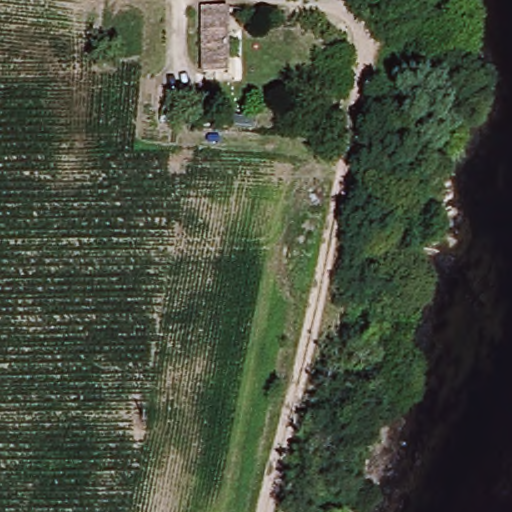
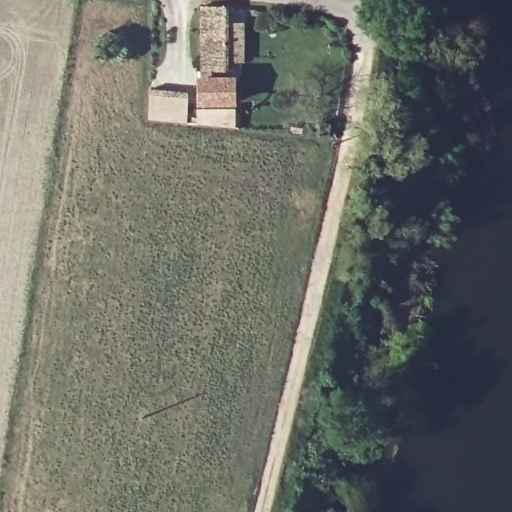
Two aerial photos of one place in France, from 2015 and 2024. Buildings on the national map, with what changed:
unchanged [(226,68),(201,67),(200,6),(224,8),(226,68)]
new [(196,109),(198,78),(236,79),(235,106),(234,128),(196,126),(196,109)]
new [(147,120),(150,90),(188,93),(185,122),(147,120)]

